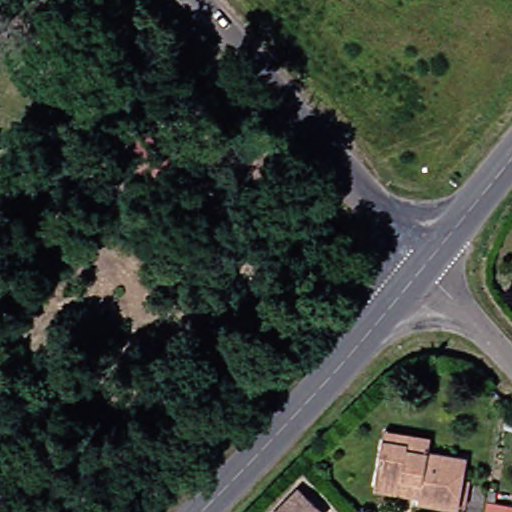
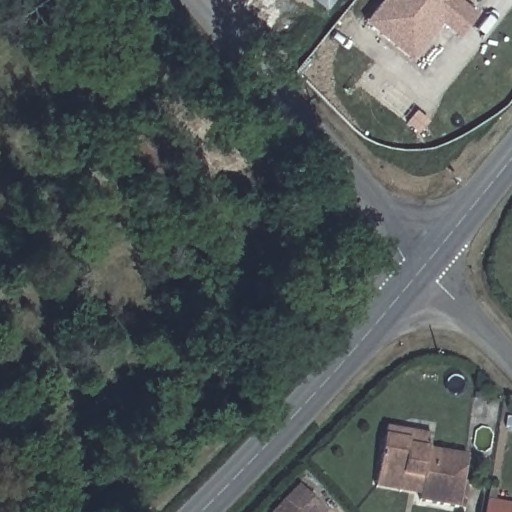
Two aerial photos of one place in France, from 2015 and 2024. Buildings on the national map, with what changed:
new [(325,11),(312,0),(334,0),(325,11)]
new [(460,2),(476,14),(457,38),(441,26),(411,62),(363,23),(382,0),(462,0),(460,2)]
new [(140,150),(123,138),(106,127),(122,104),(139,115),(156,127),(140,150)]
unchanged [(416,506),(418,497),(370,489),(371,479),(376,442),(377,430),(425,437),(423,455),(460,460),(456,483),(466,485),(462,512),(458,512),(451,511),(416,506)]
unchanged [(319,512),(286,512),(303,496),(319,512)]
unchanged [(512,506),(512,512),(482,512),(483,502),(512,506)]

